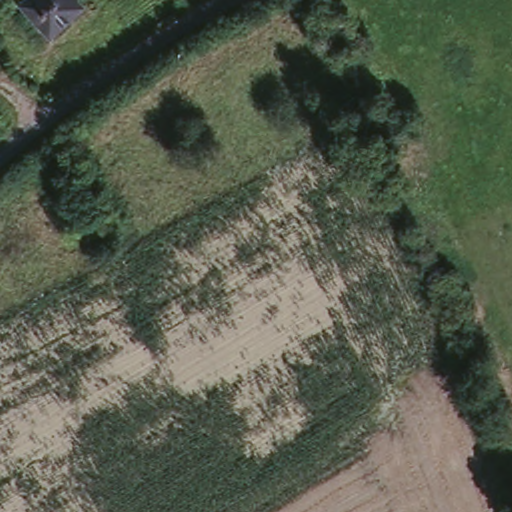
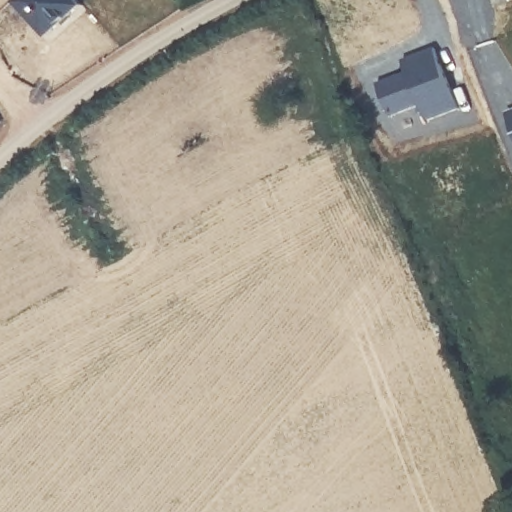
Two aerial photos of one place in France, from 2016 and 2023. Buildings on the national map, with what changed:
unchanged [(85,0),(88,4),(57,35),(28,1),(29,0),(85,0)]
new [(389,112),(379,85),(410,74),(405,61),(436,50),(457,107),(427,119),(420,101),(389,112)]
unchanged [(5,116),(0,120),(0,111),(5,116)]
new [(512,124),(508,114),(512,112),(512,124)]

